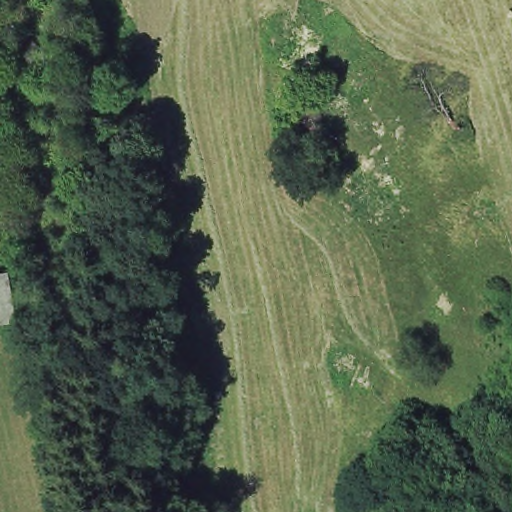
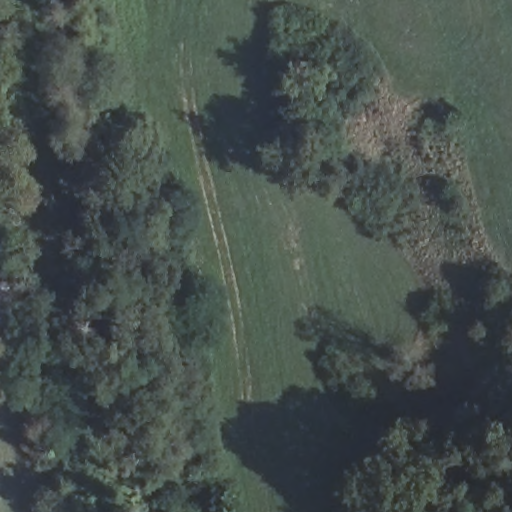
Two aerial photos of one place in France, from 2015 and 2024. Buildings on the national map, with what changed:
unchanged [(14,316),(0,319),(0,279),(6,277),(14,316)]

